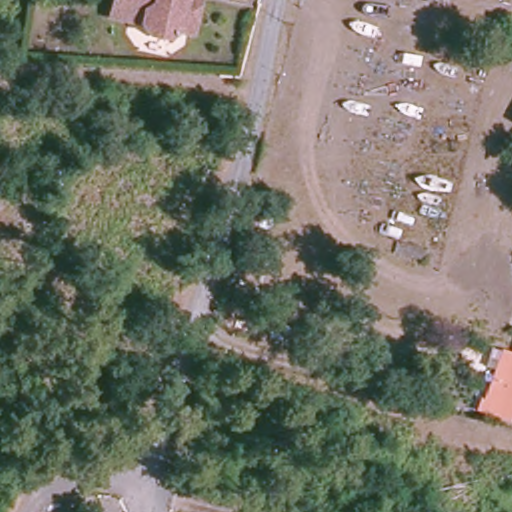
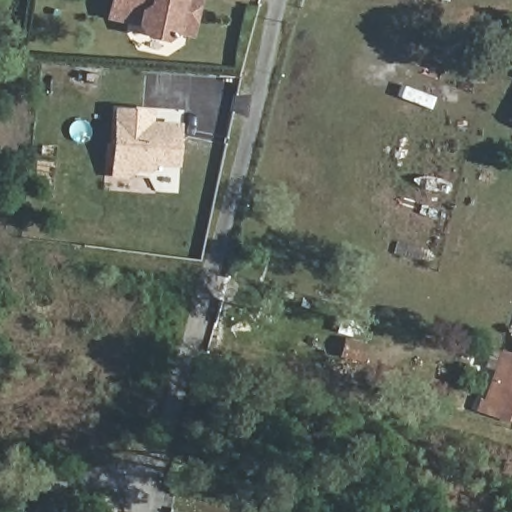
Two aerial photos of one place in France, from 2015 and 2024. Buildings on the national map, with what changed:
unchanged [(172,27),(159,35),(143,31),(135,18),(106,11),(108,0),(109,0),(193,0),(192,4),(186,30),(172,27)]
new [(114,108),(148,111),(147,123),(156,124),(178,126),(176,163),(157,162),(149,169),(132,168),(124,175),(110,174),(111,158),(114,108)]
unchanged [(345,340),(365,345),(360,361),(340,356),(345,340)]
unchanged [(512,420),(478,409),(481,401),(485,403),(496,369),(487,366),(492,351),(512,358),(512,420)]

